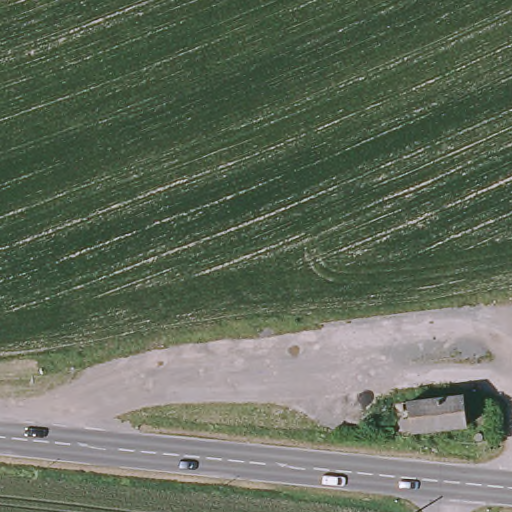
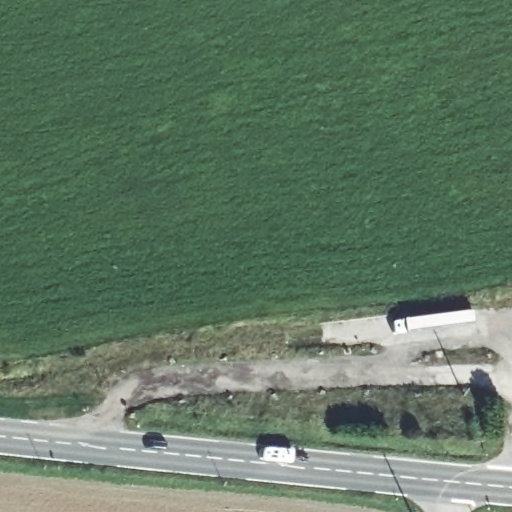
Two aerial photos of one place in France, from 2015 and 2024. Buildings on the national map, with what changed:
demolished [(461,426),(405,432),(403,404),(433,400),(459,396),(461,426)]

